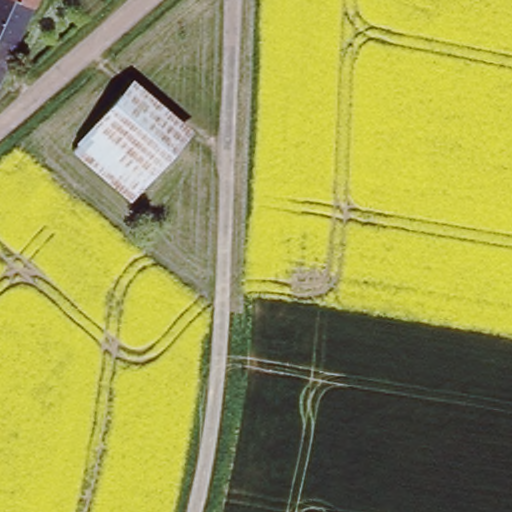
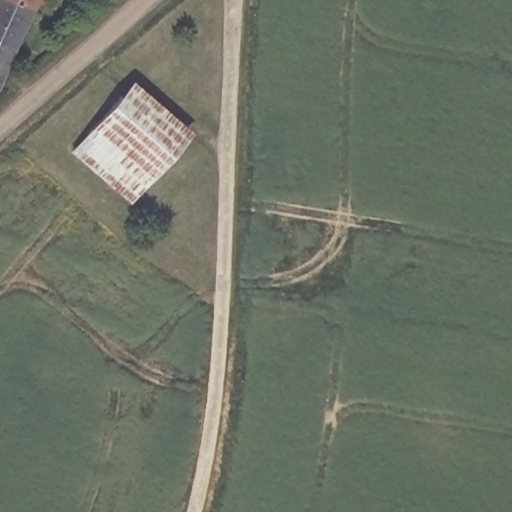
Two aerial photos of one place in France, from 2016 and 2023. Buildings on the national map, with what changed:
unchanged [(37,0),(0,78),(0,0),(37,0)]
unchanged [(73,150),(89,134),(97,124),(125,94),(137,80),(193,129),(179,145),(132,199),(73,150)]

